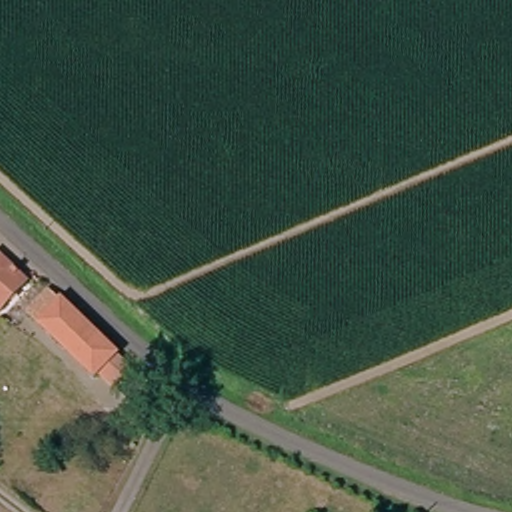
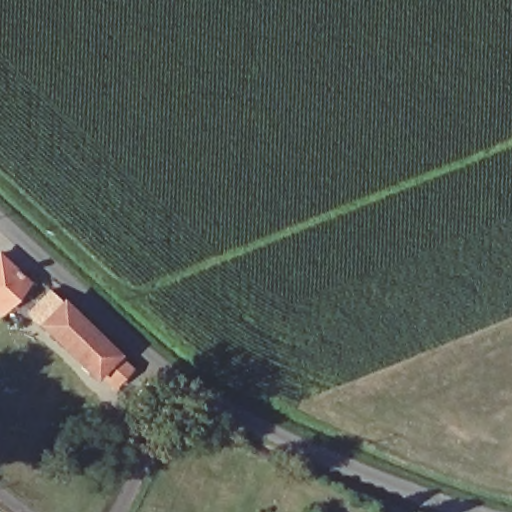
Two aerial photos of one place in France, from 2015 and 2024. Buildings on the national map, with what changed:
unchanged [(31,278),(2,309),(0,307),(0,254),(2,252),(31,278)]
unchanged [(45,325),(69,298),(127,350),(103,377),(72,348),(45,325)]

